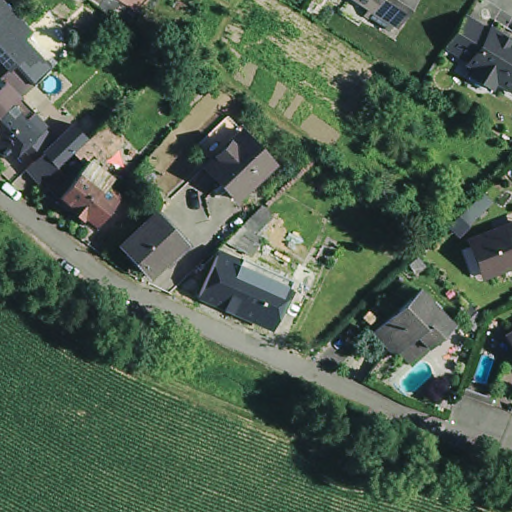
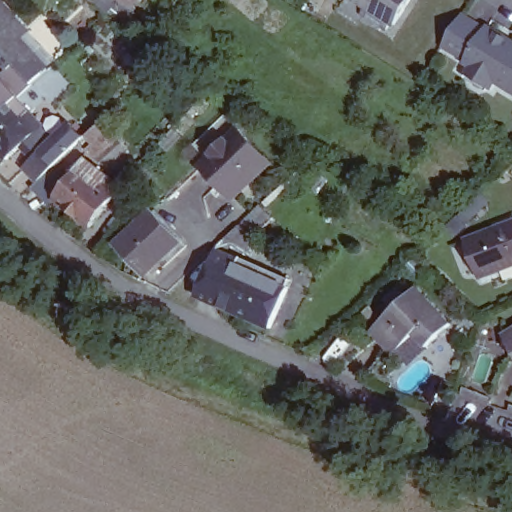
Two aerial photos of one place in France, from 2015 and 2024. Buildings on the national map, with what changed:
unchanged [(0,85),(8,70),(0,62),(0,0),(11,0),(33,31),(24,40),(50,69),(22,99),(44,123),(0,88),(0,85)]
unchanged [(141,9),(128,25),(89,0),(129,0),(141,9)]
unchanged [(141,9),(129,0),(147,0),(141,9)]
unchanged [(395,24),(392,22),(387,29),(364,14),(363,13),(367,6),(358,0),(411,0),(395,24)]
unchanged [(462,15),(486,31),(488,28),(512,43),(512,91),(496,80),(492,87),(469,74),(473,67),(467,64),(470,58),(444,42),(462,15)]
unchanged [(0,88),(44,123),(7,164),(0,158),(0,88)]
unchanged [(103,185),(117,195),(91,227),(56,199),(58,197),(41,180),(38,182),(25,168),(58,137),(72,124),(86,139),(104,121),(118,137),(107,148),(96,158),(90,151),(81,160),(73,151),(72,151),(55,166),(70,182),(89,160),(110,176),(103,185)]
unchanged [(239,127),(276,165),(238,203),(201,167),(239,127)]
unchanged [(216,249),(263,206),(274,219),(256,236),(264,241),(253,265),(216,249)]
unchanged [(115,246),(158,212),(184,246),(146,277),(115,246)]
unchanged [(481,276),(466,240),(489,230),(512,220),(512,264),(481,276)]
unchanged [(197,297),(216,249),(253,265),(296,282),(272,333),(197,297)]
unchanged [(371,336),(419,292),(452,327),(426,351),(414,338),(392,359),(371,336)]
unchanged [(504,337),(512,333),(512,351),(504,337)]

